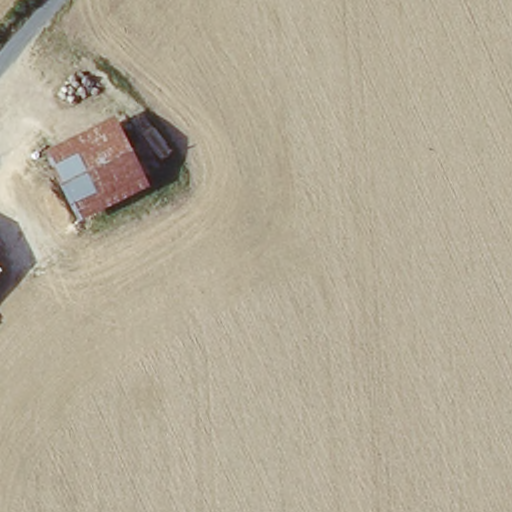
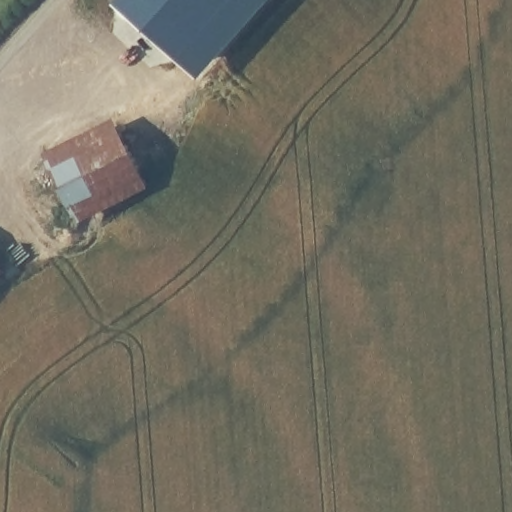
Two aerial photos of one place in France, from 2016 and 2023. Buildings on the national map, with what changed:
new [(112,1),(113,0),(270,0),(200,79),(112,1)]
unchanged [(46,161),(111,126),(145,191),(80,226),(46,161)]
unchanged [(3,271),(0,275),(0,269),(3,271)]

